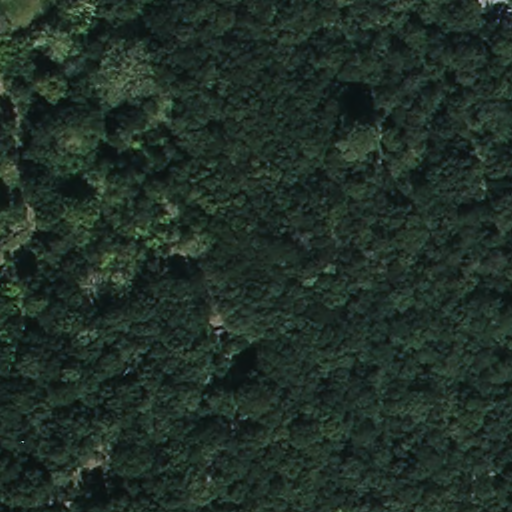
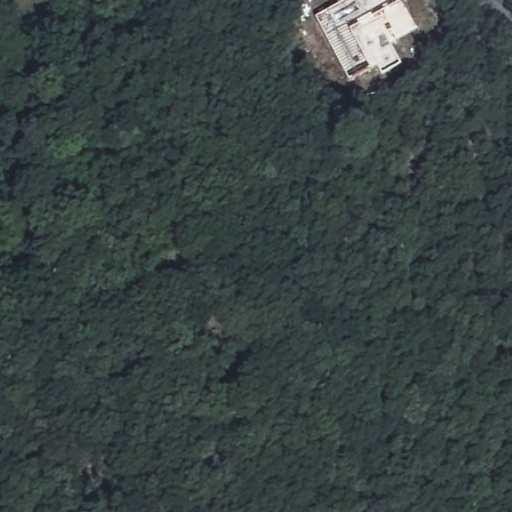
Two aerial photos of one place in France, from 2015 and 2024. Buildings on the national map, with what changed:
new [(371,69),(349,80),(316,16),(346,0),(407,0),(402,2),(417,30),(397,40),(382,12),(350,29),(371,69)]

